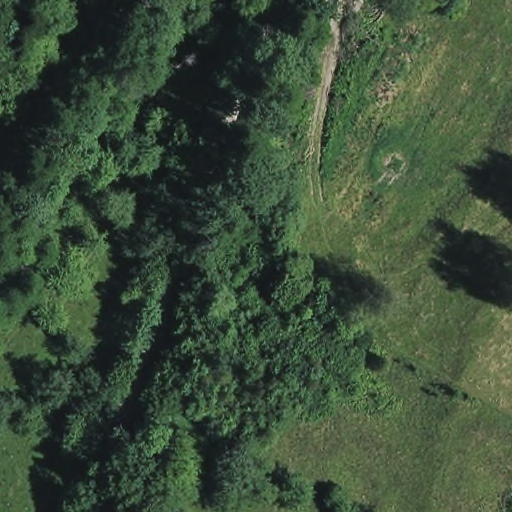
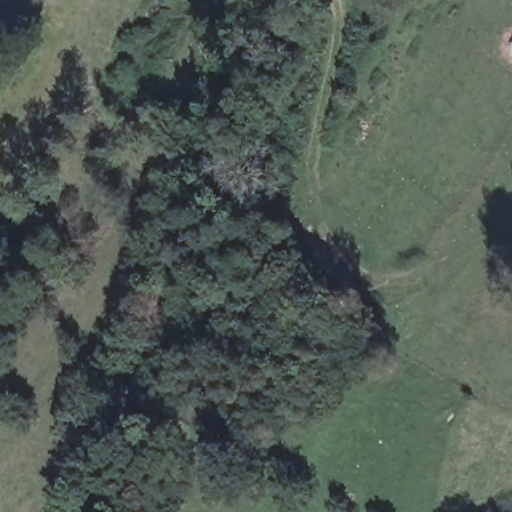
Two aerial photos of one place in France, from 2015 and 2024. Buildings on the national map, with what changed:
[]

